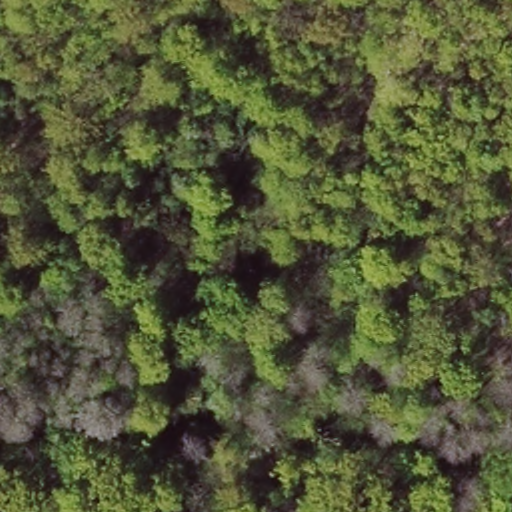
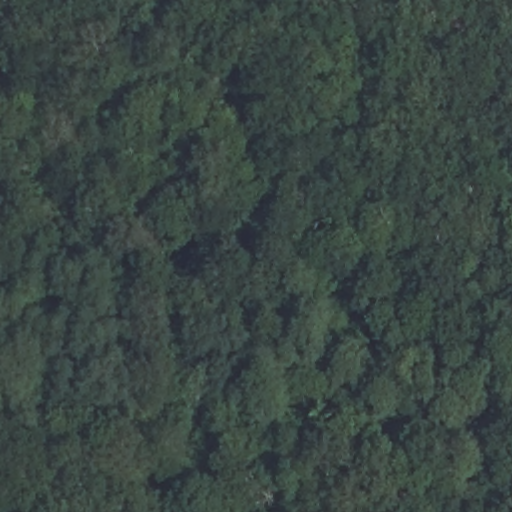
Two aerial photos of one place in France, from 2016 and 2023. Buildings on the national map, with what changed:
[]

